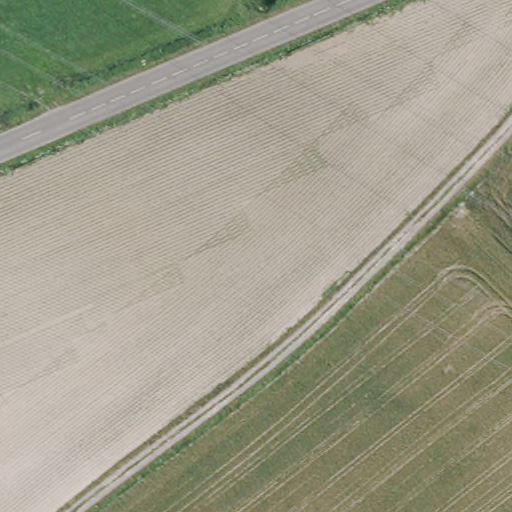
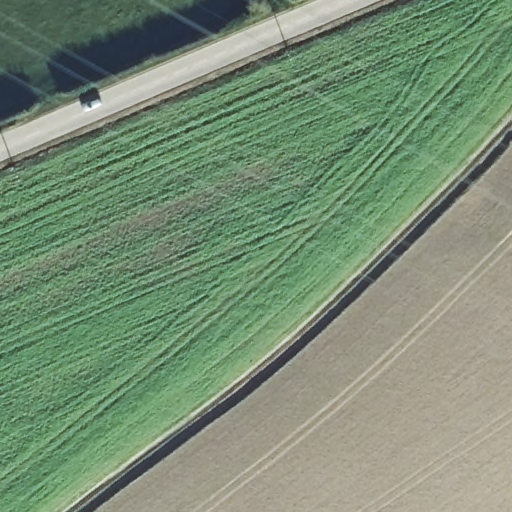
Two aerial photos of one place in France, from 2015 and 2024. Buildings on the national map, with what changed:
[]

